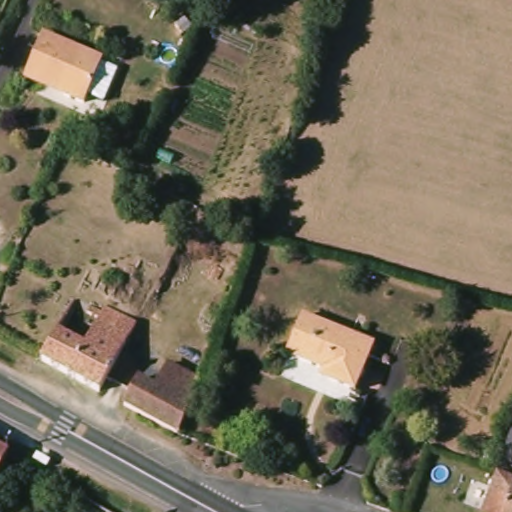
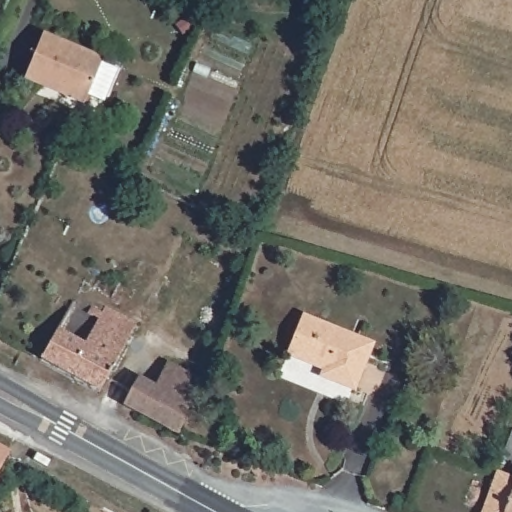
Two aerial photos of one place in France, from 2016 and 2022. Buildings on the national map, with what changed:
unchanged [(21,83),(37,44),(40,46),(47,30),(79,43),(73,59),(97,69),(78,114),(57,105),(18,89),(21,83)]
unchanged [(99,397),(40,365),(56,335),(79,348),(88,331),(82,328),(91,311),(102,317),(105,311),(137,328),(99,397)]
unchanged [(323,371),(287,356),(302,317),(371,345),(353,391),(328,381),(320,377),(323,371)]
unchanged [(178,434),(124,405),(138,379),(155,388),(168,364),(198,380),(188,406),(179,432),(178,434)]
unchanged [(13,449),(0,474),(0,442),(13,449)]
unchanged [(512,449),(512,468),(506,465),(512,449)]
unchanged [(487,512),(500,477),(512,481),(512,502),(508,512),(487,512)]
unchanged [(512,512),(508,512),(512,502),(512,512)]

